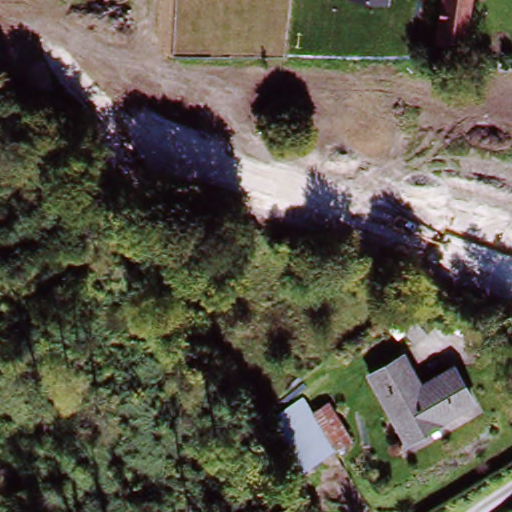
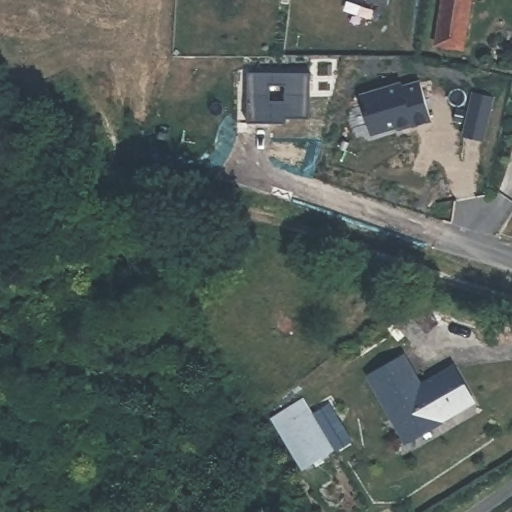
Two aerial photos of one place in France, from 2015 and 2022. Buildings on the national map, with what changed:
unchanged [(386,8),(347,3),(348,0),(387,0),(386,8)]
unchanged [(465,19),(459,46),(432,40),(441,0),(470,0),(465,19)]
new [(312,111),(289,112),(289,117),(250,118),(248,67),(310,65),(312,111)]
new [(400,79),(401,83),(418,78),(429,116),(412,121),(411,117),(370,129),(359,91),(400,79)]
new [(493,95),(482,138),(463,133),(474,91),(493,95)]
unchanged [(419,338),(417,348),(404,345),(410,322),(442,329),(439,342),(419,338)]
unchanged [(381,356),(376,348),(394,337),(399,345),(381,356)]
unchanged [(471,399),(408,439),(369,375),(398,356),(417,386),(450,365),(471,399)]
unchanged [(353,441),(302,473),(269,418),(303,398),(312,411),(328,401),(353,441)]

